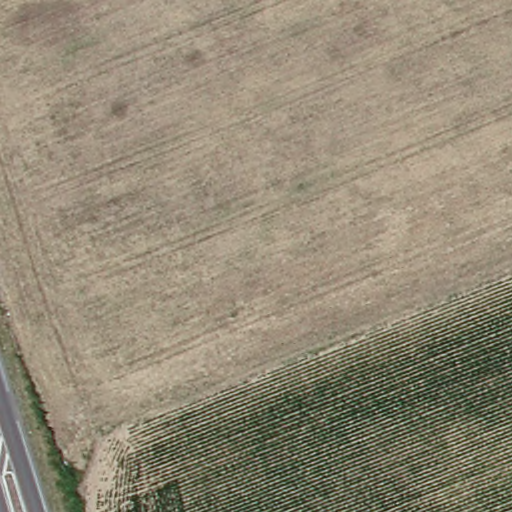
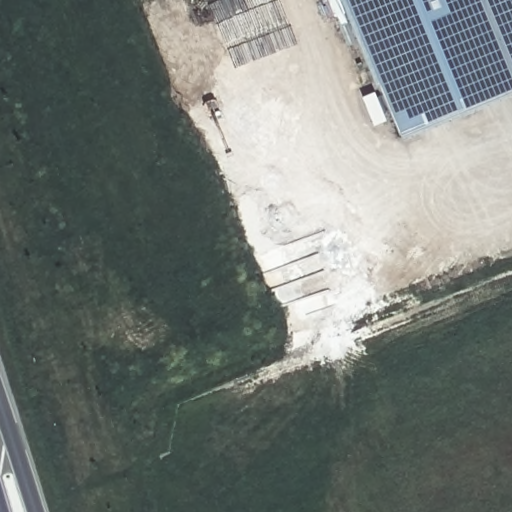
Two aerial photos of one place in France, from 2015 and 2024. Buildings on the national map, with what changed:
new [(340,0),(512,0),(512,71),(389,120),(340,0)]

